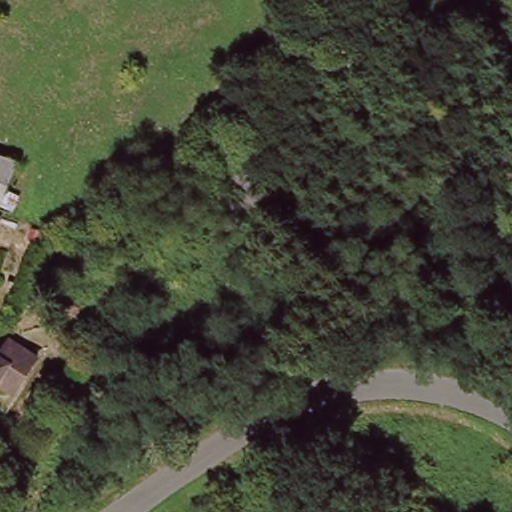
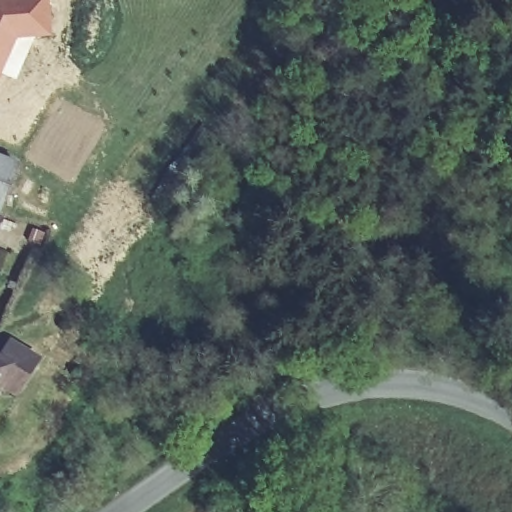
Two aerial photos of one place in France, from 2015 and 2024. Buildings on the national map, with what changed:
new [(49,0),(52,35),(33,37),(33,39),(15,80),(1,74),(0,77),(0,0),(49,0)]
unchanged [(0,200),(0,159),(13,164),(0,200)]
unchanged [(1,216),(0,221),(0,216),(1,216)]
unchanged [(3,347),(14,354),(0,376),(0,351),(3,347)]

